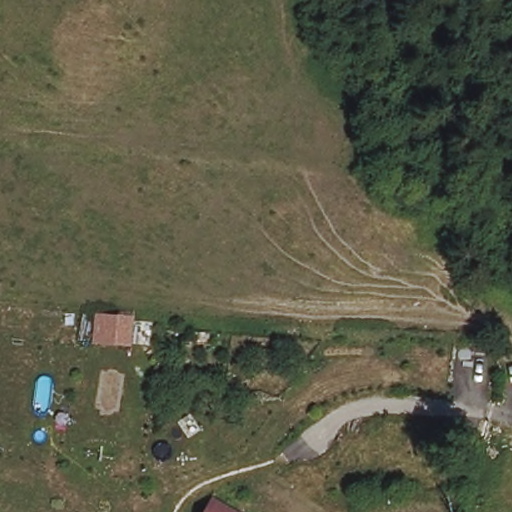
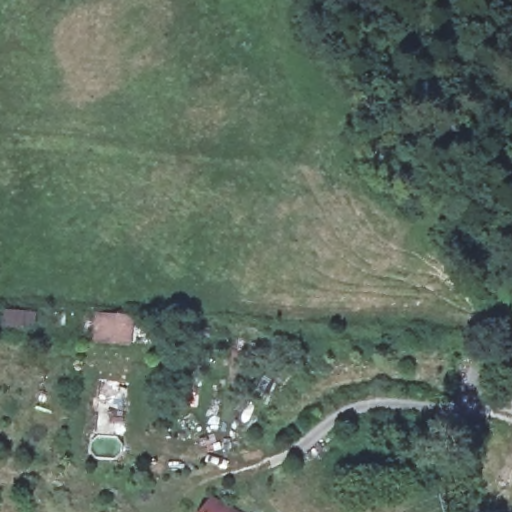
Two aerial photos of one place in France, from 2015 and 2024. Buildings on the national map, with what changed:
unchanged [(206,512),(211,502),(229,512),(206,512)]

